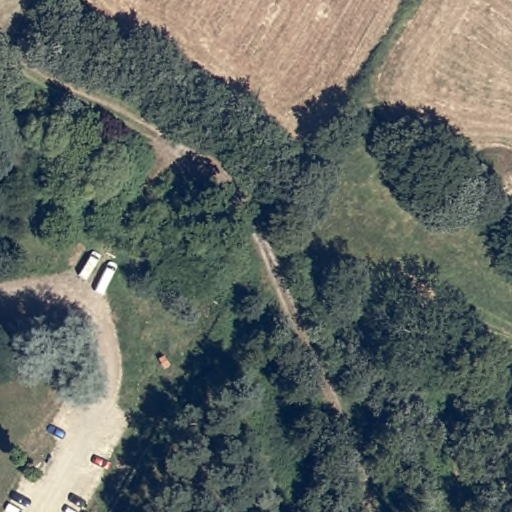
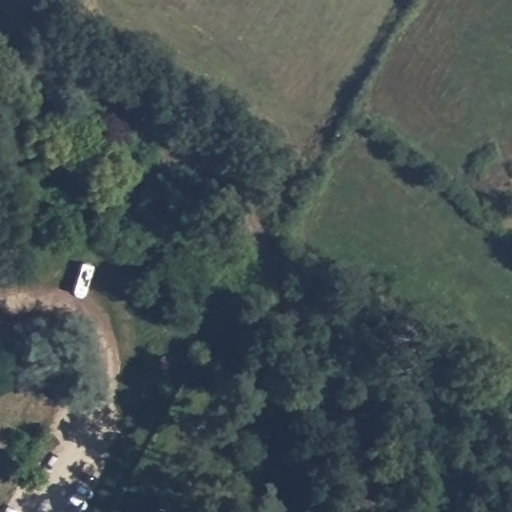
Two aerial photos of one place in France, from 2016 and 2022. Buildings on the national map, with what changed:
[]

